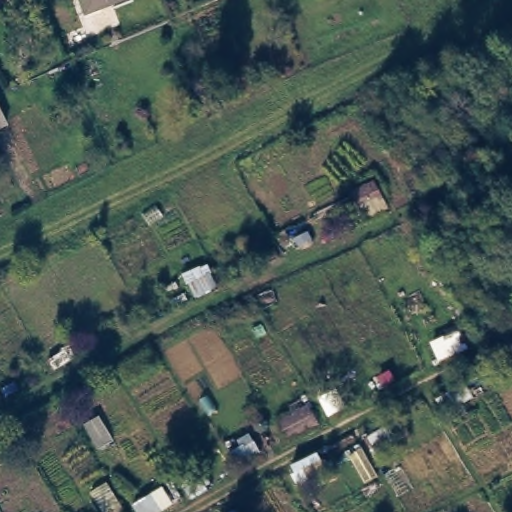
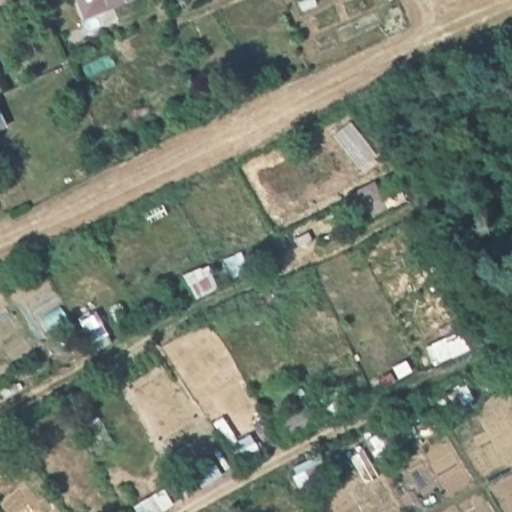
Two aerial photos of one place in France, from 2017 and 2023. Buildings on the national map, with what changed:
unchanged [(84,9),(80,0),(107,0),(84,9)]

